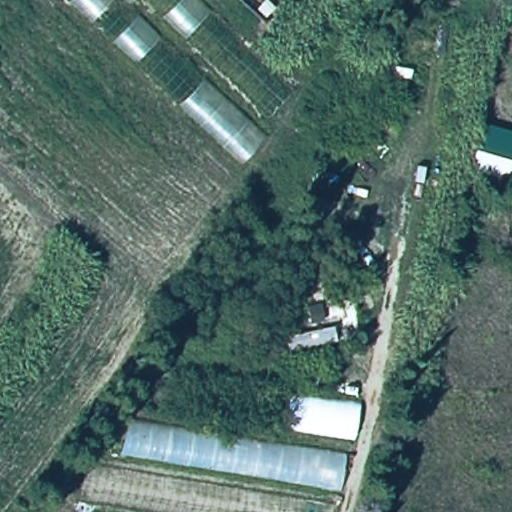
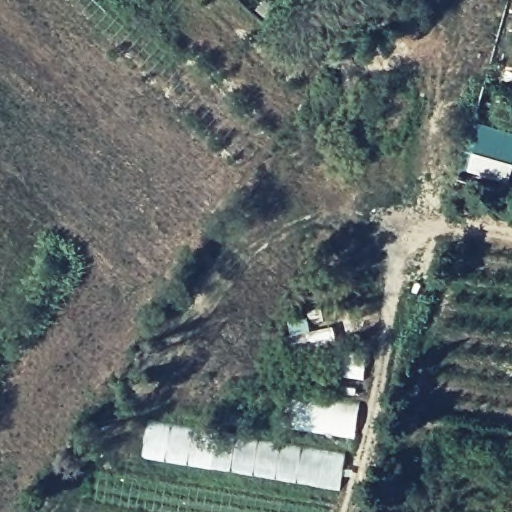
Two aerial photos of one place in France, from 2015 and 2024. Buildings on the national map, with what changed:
demolished [(265,116),(235,154),(134,64),(68,0),(193,0),(289,90),(265,116)]
new [(476,120),(512,130),(512,169),(510,180),(465,168),(476,120)]
new [(313,400),(327,402),(326,409),(360,415),(355,438),(294,427),(295,420),(286,413),(287,402),(313,400)]
unchanged [(342,482),(332,481),(331,497),(330,512),(49,512),(50,501),(77,502),(84,454),(102,456),(109,415),(347,447),(342,482)]

